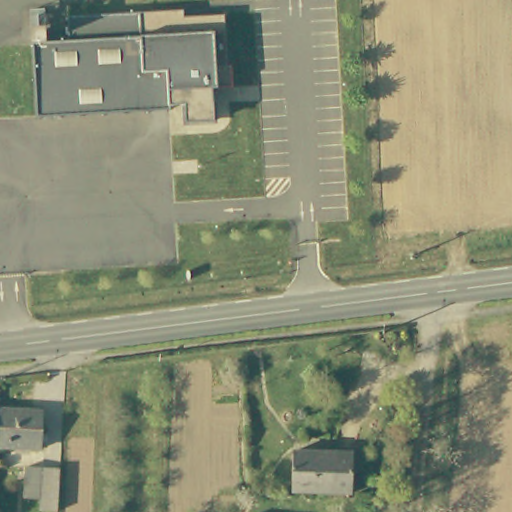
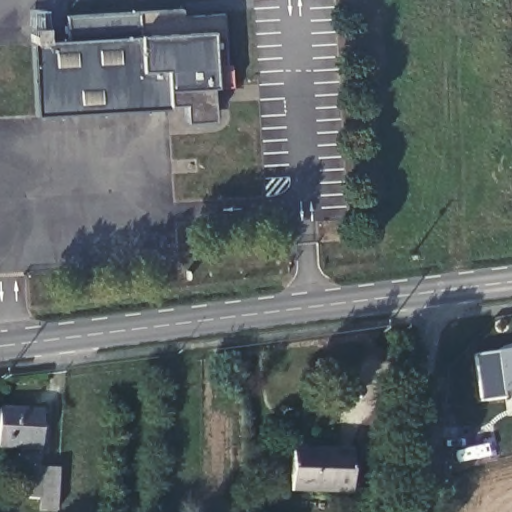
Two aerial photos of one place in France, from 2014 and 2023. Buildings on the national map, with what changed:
unchanged [(38,121),(34,46),(70,44),(68,19),(183,13),(183,19),(225,17),(228,70),(231,70),(232,91),(212,92),(214,125),(186,126),(185,109),(171,109),(172,114),(38,122),(38,121)]
new [(498,351),(499,356),(512,355),(512,389),(506,389),(507,397),(482,400),(474,354),(498,351)]
unchanged [(41,449),(0,446),(0,409),(43,411),(41,449)]
unchanged [(352,454),(349,493),(290,489),(294,452),(352,454)]
unchanged [(58,469),(55,511),(40,511),(40,498),(25,498),(27,468),(58,469)]

